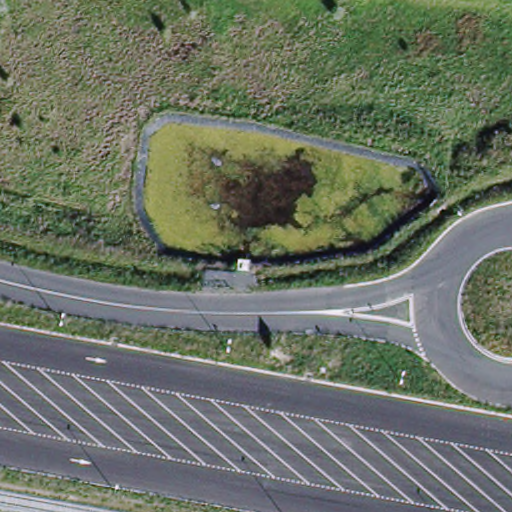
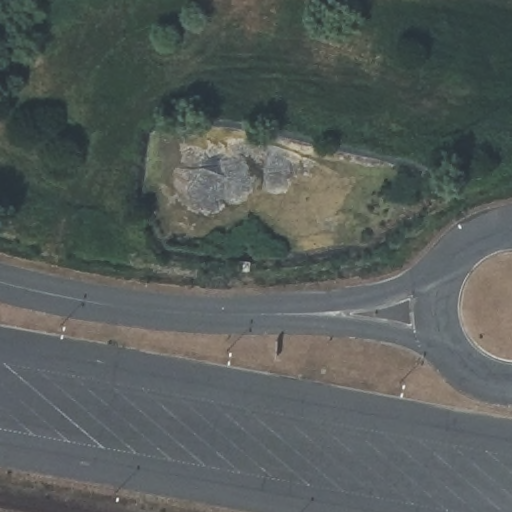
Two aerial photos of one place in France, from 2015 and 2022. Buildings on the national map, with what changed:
[]

